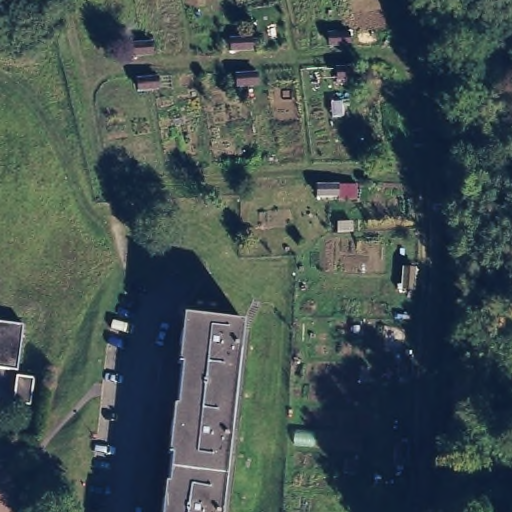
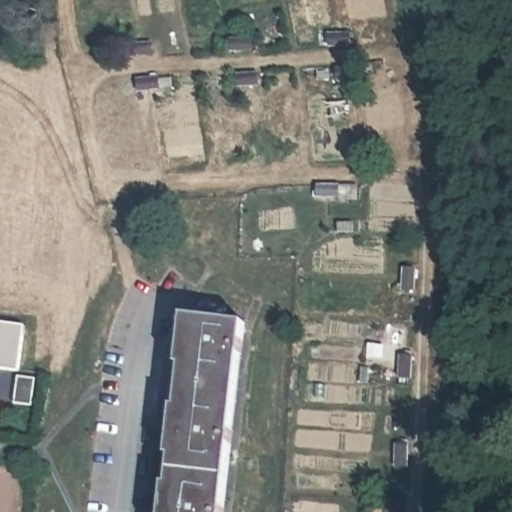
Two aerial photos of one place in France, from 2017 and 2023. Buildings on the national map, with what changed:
unchanged [(318,195),(318,185),(338,185),(339,195),(318,195)]
unchanged [(404,288),(405,267),(415,268),(414,288),(404,288)]
unchanged [(172,398),(174,385),(180,325),(239,332),(218,512),(159,512),(172,398)]
unchanged [(12,375),(0,373),(0,326),(19,328),(12,375)]
unchanged [(400,376),(401,356),(412,356),(410,376),(400,376)]
unchanged [(396,465),(397,444),(407,444),(407,465),(396,465)]

